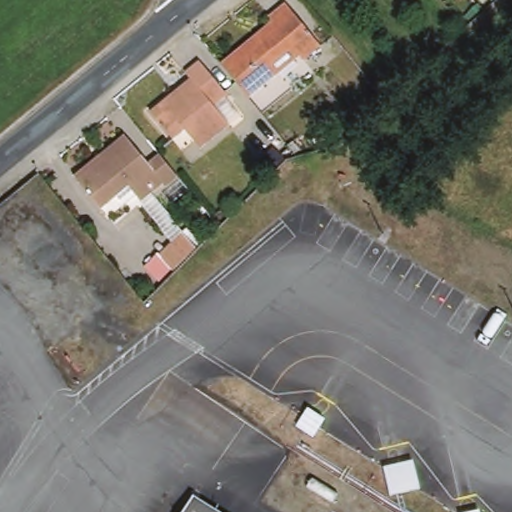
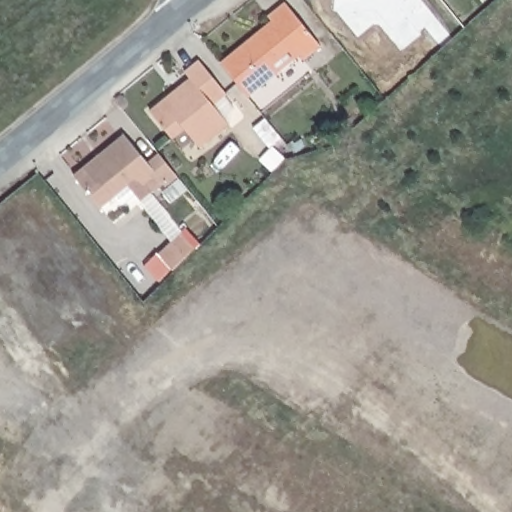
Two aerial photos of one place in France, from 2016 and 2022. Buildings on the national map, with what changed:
unchanged [(272,25),(268,20),(285,6),(320,49),(302,63),(298,58),(248,99),(221,66),(272,25)]
unchanged [(175,142),(152,114),(176,95),(194,80),(189,75),(203,63),(230,97),(216,108),(231,127),(201,150),(186,132),(175,142)]
unchanged [(163,188),(142,205),(130,190),(102,213),(79,184),(75,180),(100,159),(125,139),(148,166),(160,156),(179,181),(166,191),(163,188)]
unchanged [(172,219),(185,235),(162,256),(148,241),(172,219)]
demolished [(220,512),(181,512),(192,494),(220,512)]

